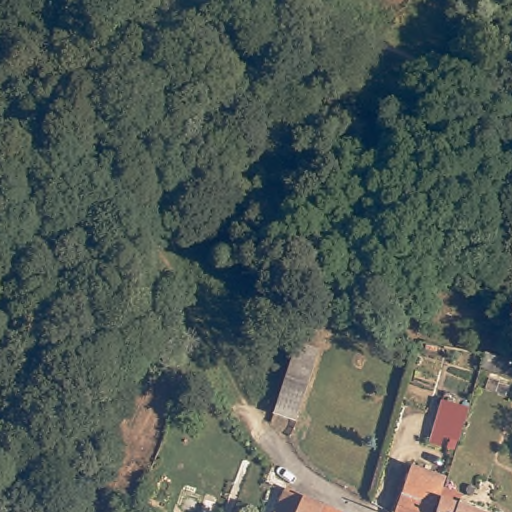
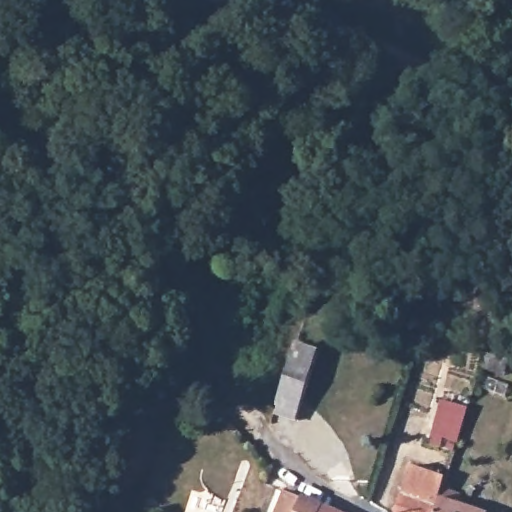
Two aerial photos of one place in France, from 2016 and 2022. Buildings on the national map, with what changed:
unchanged [(299,345),(322,351),(299,420),(275,415),(299,345)]
unchanged [(440,437),(438,446),(425,442),(437,400),(464,407),(457,441),(440,437)]
unchanged [(446,500),(481,512),(401,512),(416,468),(452,480),(446,500)]
unchanged [(330,512),(300,512),(304,501),(330,512)]

